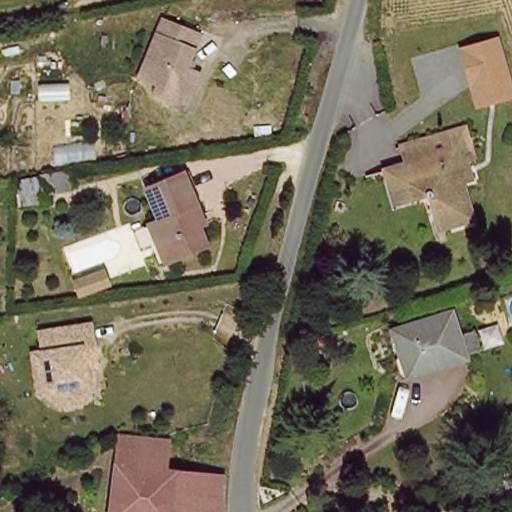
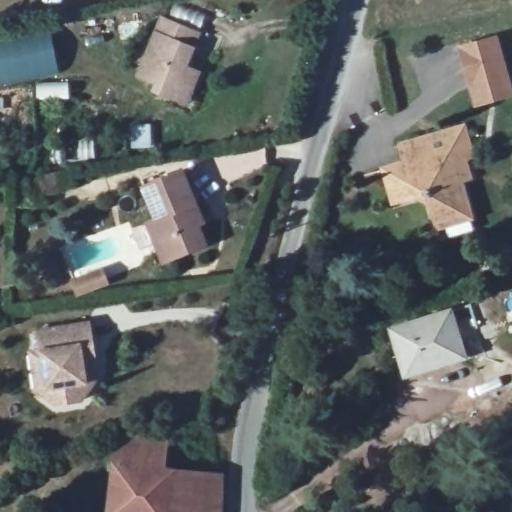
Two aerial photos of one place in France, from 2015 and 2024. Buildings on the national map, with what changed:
unchanged [(169,100),(151,94),(153,87),(134,81),(153,20),(190,31),(180,65),(194,69),(188,89),(183,104),(169,100)]
new [(0,38),(49,27),(62,73),(2,90),(0,81),(0,38)]
unchanged [(470,108),(452,48),(496,37),(510,96),(470,108)]
unchanged [(473,163),(467,167),(473,186),(463,189),(471,223),(439,233),(426,199),(391,207),(383,173),(400,170),(395,153),(425,144),(465,132),(473,163)]
unchanged [(154,225),(163,221),(151,190),(191,175),(219,247),(180,262),(169,266),(154,225)]
unchanged [(477,350),(464,355),(466,359),(443,366),(442,363),(405,375),(391,331),(451,311),(459,337),(472,333),(477,350)]
unchanged [(81,391),(74,400),(51,403),(42,396),(31,388),(25,351),(35,349),(32,329),(84,322),(90,366),(86,367),(88,382),(81,391)]
unchanged [(169,448),(167,464),(166,477),(117,473),(118,460),(119,444),(169,448)]
unchanged [(117,473),(166,477),(223,482),(220,512),(109,512),(113,473),(117,473)]

